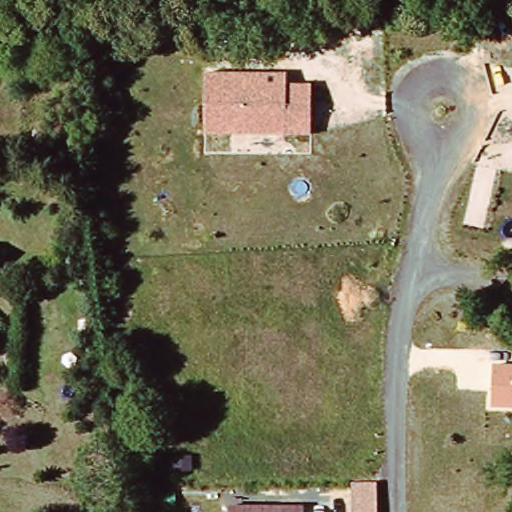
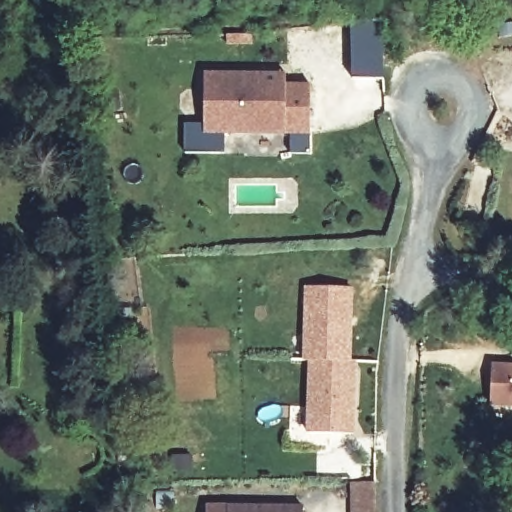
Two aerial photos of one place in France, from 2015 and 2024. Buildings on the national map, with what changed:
new [(378,22),(381,81),(350,82),(347,25),(378,22)]
unchanged [(287,72),(287,82),(312,83),(311,134),(205,136),(205,72),(287,72)]
unchanged [(3,247),(2,273),(0,273),(0,247),(3,247)]
new [(303,291),(347,292),(346,365),(351,365),(350,439),(304,437),(307,365),(301,365),(303,291)]
unchanged [(512,366),(512,406),(492,405),(493,365),(512,366)]
unchanged [(378,483),(379,512),(356,512),(355,484),(378,483)]
unchanged [(306,512),(234,512),(233,510),(306,510),(306,512)]

